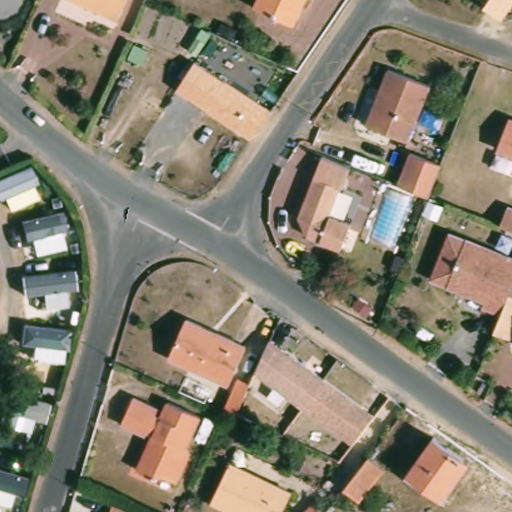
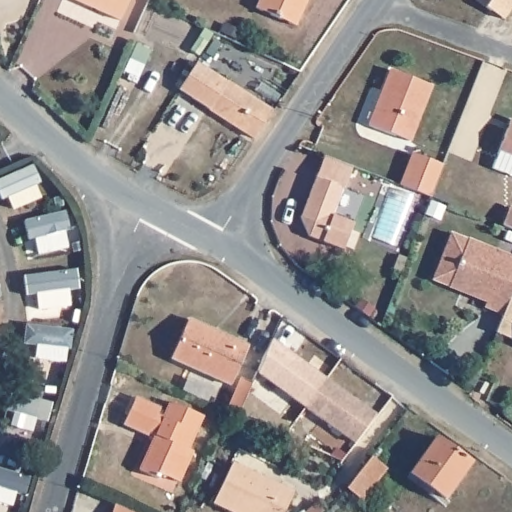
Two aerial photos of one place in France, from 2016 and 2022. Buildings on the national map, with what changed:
unchanged [(119,22),(69,0),(128,0),(119,22)]
unchanged [(301,34),(261,16),(267,0),(316,0),(301,34)]
unchanged [(512,13),(505,24),(487,12),(493,4),(488,0),(512,0),(512,13)]
unchanged [(206,66),(197,61),(205,48),(214,53),(206,66)]
unchanged [(203,71),(279,117),(262,145),(186,98),(203,71)]
unchanged [(395,76),(435,93),(414,148),(374,131),(395,76)]
unchanged [(512,158),(502,154),(512,129),(512,158)]
unchanged [(401,190),(415,157),(446,168),(432,202),(401,190)]
unchanged [(358,172),(350,193),(346,191),(336,219),(358,227),(348,254),(314,240),(306,218),(329,160),(358,172)]
unchanged [(510,212),(512,212),(512,233),(503,230),(510,212)]
unchanged [(504,319),(485,312),(487,306),(433,285),(450,239),(512,262),(512,335),(500,330),(504,319)]
unchanged [(184,316),(242,342),(225,382),(166,356),(184,316)]
unchanged [(272,341),(379,415),(362,437),(358,442),(258,374),(272,341)]
unchanged [(224,409),(222,408),(232,385),(236,377),(247,381),(243,390),(233,413),(224,409)]
unchanged [(159,442),(154,440),(152,443),(128,431),(140,404),(164,416),(162,420),(168,423),(174,409),(208,424),(192,456),(197,458),(183,489),(166,481),(163,486),(143,477),(159,442)]
unchanged [(441,440),(477,464),(449,501),(415,476),(441,440)]
unchanged [(326,460),(320,474),(311,470),(317,456),(326,460)]
unchanged [(345,491),(357,476),(368,461),(370,459),(386,472),(372,489),(360,503),(345,491)]
unchanged [(292,496),(284,512),(227,512),(213,505),(232,465),(292,496)]
unchanged [(323,512),(309,512),(316,505),(323,512)]
unchanged [(127,512),(113,512),(115,506),(127,512)]

